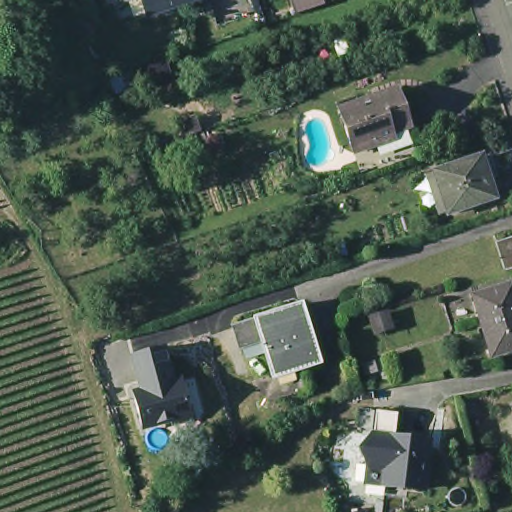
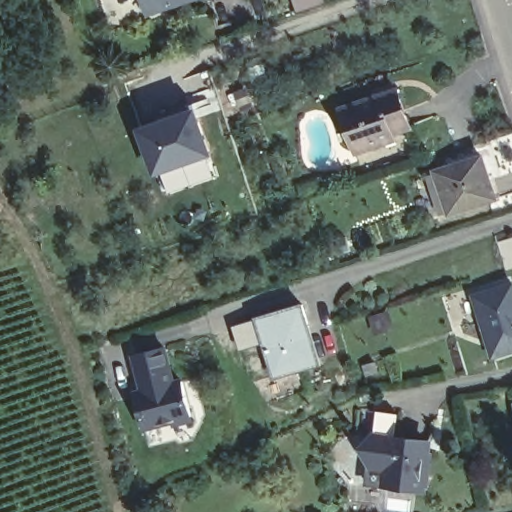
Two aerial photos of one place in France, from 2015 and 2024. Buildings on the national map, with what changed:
unchanged [(122,0),(200,0),(202,5),(153,21),(151,16),(146,2),(125,9),(122,0)]
demolished [(168,63),(174,79),(159,84),(153,68),(168,63)]
demolished [(136,71),(140,83),(115,91),(111,79),(136,71)]
unchanged [(374,150),(354,158),(340,116),(339,113),(395,93),(396,96),(409,131),(389,138),(392,144),(374,150)]
new [(191,106),(209,156),(148,177),(131,129),(191,106)]
demolished [(231,159),(231,153),(230,147),(243,146),(243,148),(244,159),(231,159)]
unchanged [(426,174),(437,170),(482,155),(494,195),(449,210),(439,214),(426,174)]
unchanged [(499,241),(512,237),(512,267),(509,269),(499,241)]
unchanged [(472,294),(510,283),(512,290),(512,348),(490,354),(472,294)]
unchanged [(243,351),(241,352),(234,329),(256,323),(260,322),(303,309),(309,328),(305,329),(308,336),(264,349),(263,345),(258,347),(243,351)]
unchanged [(314,360),(301,364),(303,371),(274,380),(264,349),(308,336),(314,360)]
unchanged [(168,343),(177,376),(185,374),(196,420),(142,433),(131,391),(138,389),(126,354),(168,343)]
unchanged [(433,441),(428,492),(369,488),(370,468),(357,449),(367,435),(433,441)]

